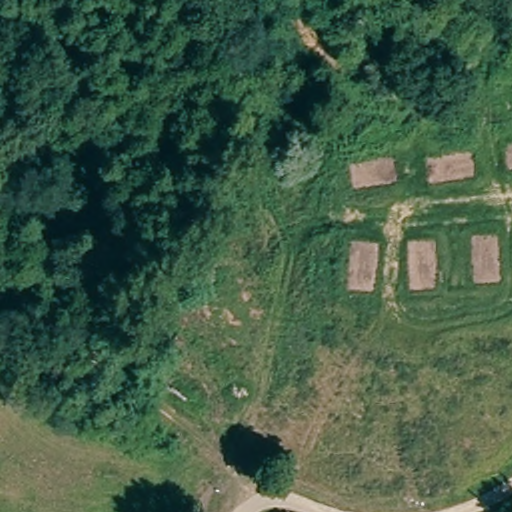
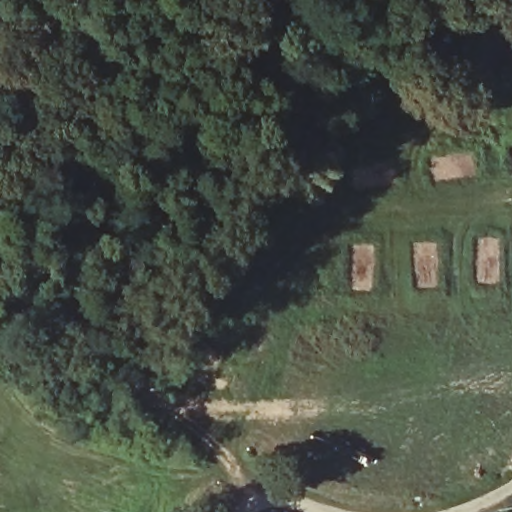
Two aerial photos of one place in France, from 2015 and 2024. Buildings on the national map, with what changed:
unchanged [(285,512),(278,512),(279,510),(285,512)]

